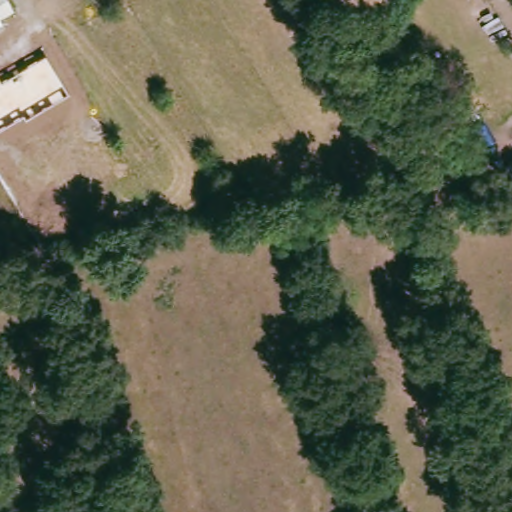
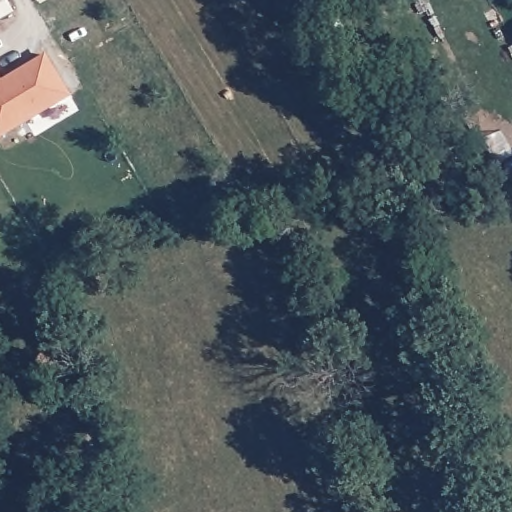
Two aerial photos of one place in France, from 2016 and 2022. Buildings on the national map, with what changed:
new [(8,0),(15,12),(0,20),(0,0),(8,0)]
demolished [(14,0),(20,12),(0,23),(0,0),(14,0)]
new [(0,137),(0,78),(1,79),(47,54),(72,95),(0,137)]
unchanged [(512,164),(512,182),(505,169),(512,164)]

